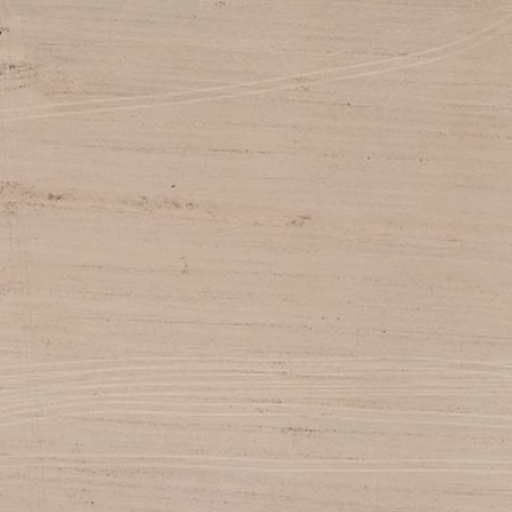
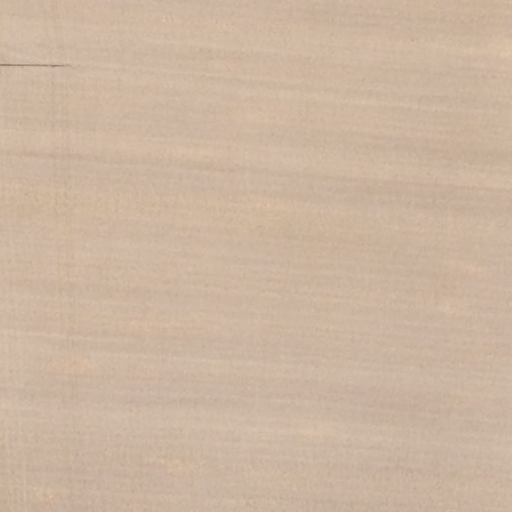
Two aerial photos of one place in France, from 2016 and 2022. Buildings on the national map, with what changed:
[]

